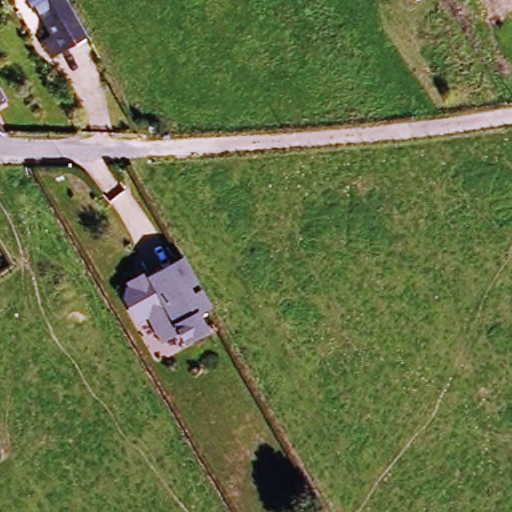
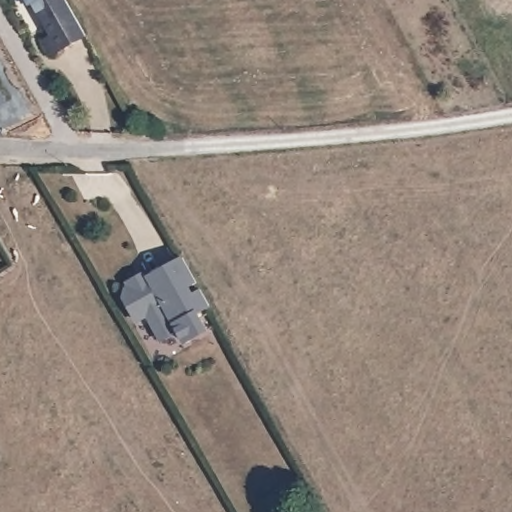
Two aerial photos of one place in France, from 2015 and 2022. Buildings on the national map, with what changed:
unchanged [(30,9),(25,0),(63,0),(84,38),(58,51),(49,57),(40,42),(50,37),(34,7),(30,9)]
unchanged [(0,109),(0,96),(6,106),(0,109)]
unchanged [(0,137),(1,139),(0,138),(0,137)]
unchanged [(207,334),(190,343),(185,346),(179,334),(162,344),(147,318),(137,324),(124,301),(126,293),(153,278),(175,266),(184,261),(210,309),(202,314),(197,316),(207,334)]

